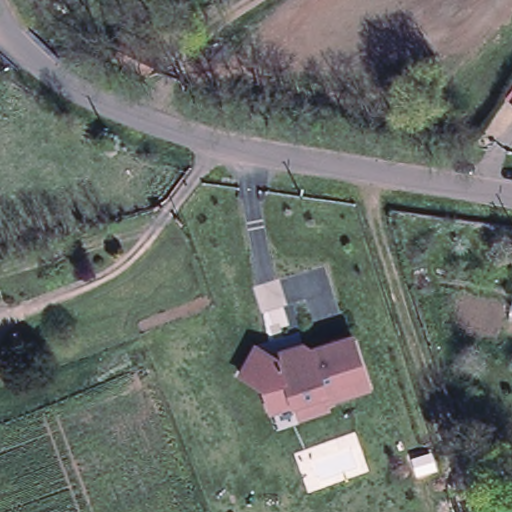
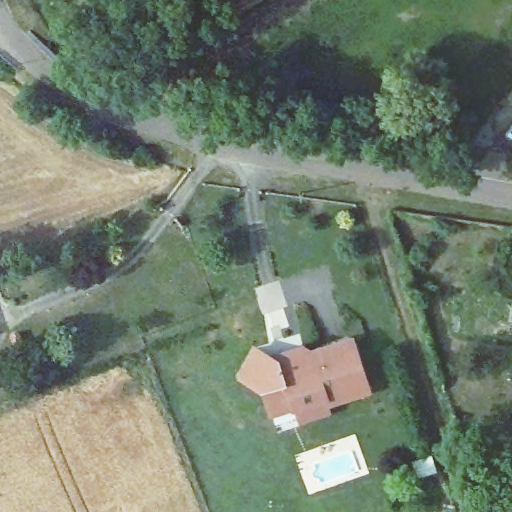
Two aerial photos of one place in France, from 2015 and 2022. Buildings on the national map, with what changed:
unchanged [(157,54),(147,74),(113,59),(121,42),(123,38),(127,40),(157,54)]
unchanged [(512,101),(512,105),(510,104),(512,101)]
unchanged [(422,267),(426,281),(417,283),(412,271),(422,267)]
unchanged [(372,387),(327,403),(330,412),(300,422),(295,407),(270,415),(261,387),(240,373),(255,342),(274,351),(305,342),(311,347),(355,332),(372,387)]

